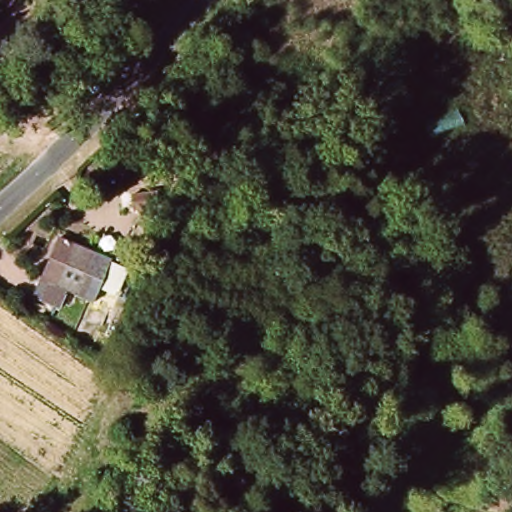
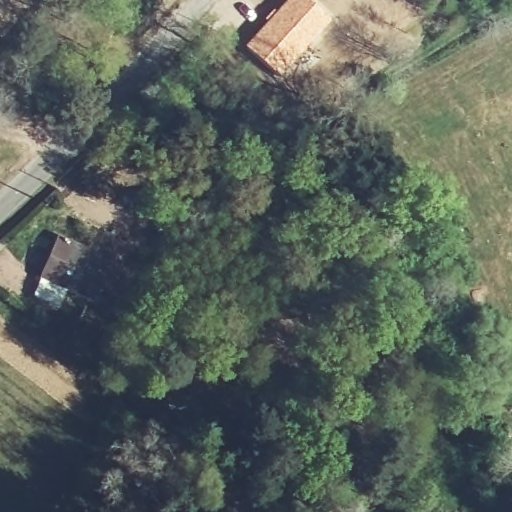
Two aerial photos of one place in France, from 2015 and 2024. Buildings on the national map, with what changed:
new [(287,0),(309,0),(330,22),(280,81),(243,46),(287,0)]
unchanged [(145,207),(145,190),(175,190),(176,206),(145,207)]
unchanged [(30,295),(57,237),(112,262),(90,303),(64,291),(57,307),(30,295)]

